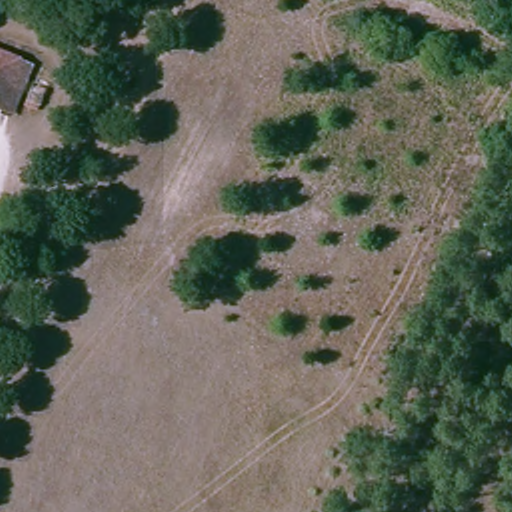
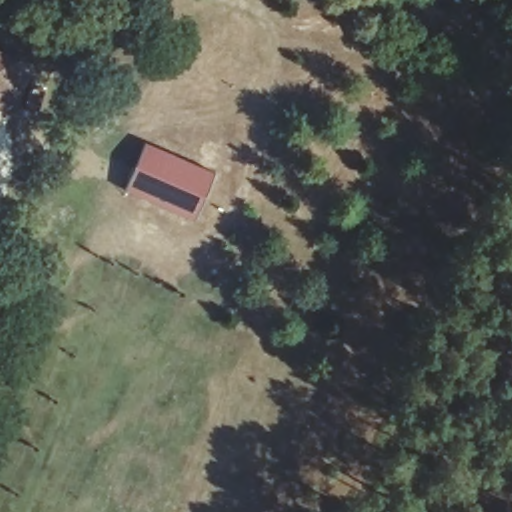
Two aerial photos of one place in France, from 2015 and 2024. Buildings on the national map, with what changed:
unchanged [(0,38),(14,43),(6,63),(25,71),(4,117),(0,115),(0,38)]
new [(215,173),(195,221),(122,191),(145,143),(215,173)]

